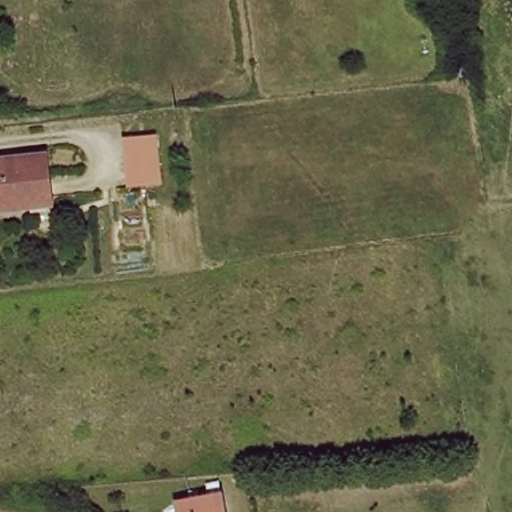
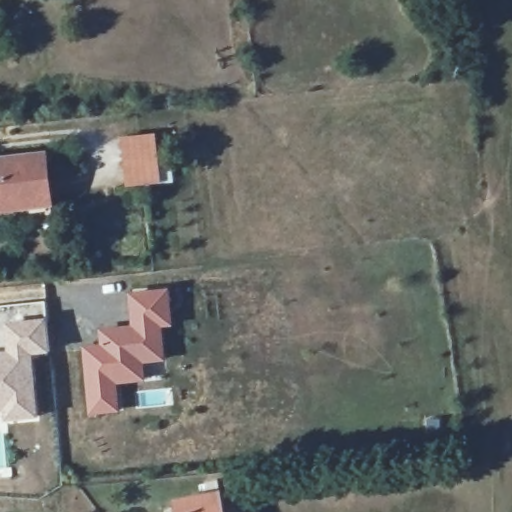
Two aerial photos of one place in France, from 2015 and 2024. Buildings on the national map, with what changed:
unchanged [(124,145),(154,141),(158,181),(128,184),(124,145)]
unchanged [(45,158),(51,210),(27,213),(0,216),(0,164),(45,158)]
new [(99,342),(97,325),(130,323),(127,290),(169,287),(174,327),(163,328),(166,361),(144,364),(146,380),(117,384),(120,412),(88,416),(80,344),(99,342)]
new [(5,347),(2,323),(46,316),(51,354),(33,356),(39,418),(2,423),(0,413),(0,348),(5,347)]
unchanged [(174,512),(173,506),(217,497),(219,512),(174,512)]

